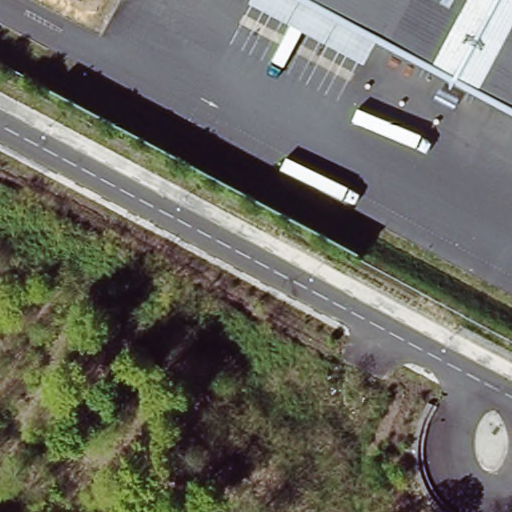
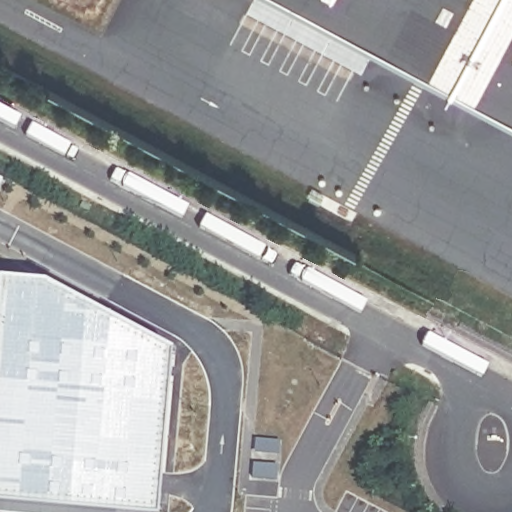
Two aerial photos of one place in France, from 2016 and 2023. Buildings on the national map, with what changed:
unchanged [(303,0),(512,0),(512,112),(303,0)]
new [(179,358),(166,512),(3,512),(0,512),(0,287),(42,288),(179,358)]

